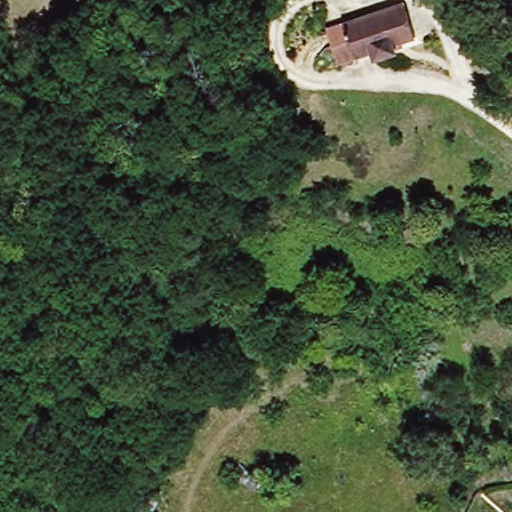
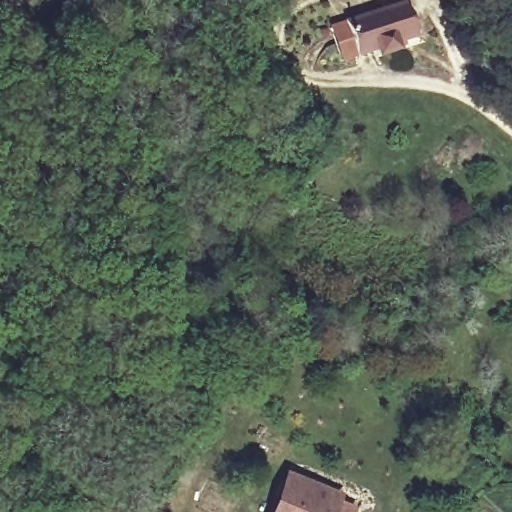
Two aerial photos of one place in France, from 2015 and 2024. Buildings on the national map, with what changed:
unchanged [(324,37),(337,31),(402,0),(409,0),(423,30),(407,36),(410,43),(390,52),(386,46),(352,63),(339,69),(324,37)]
new [(337,492),(330,512),(271,512),(285,472),(337,492)]
new [(122,512),(89,512),(89,510),(121,507),(122,512)]

